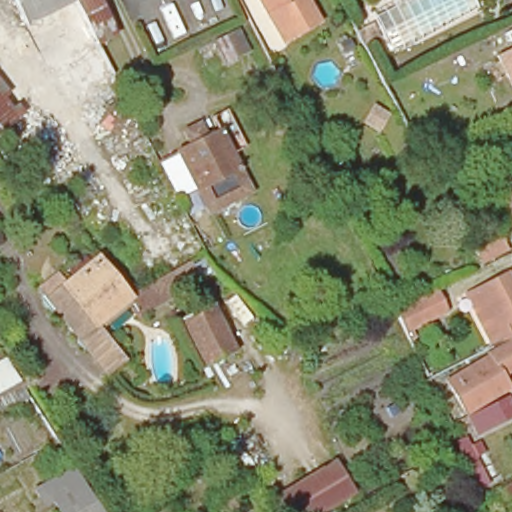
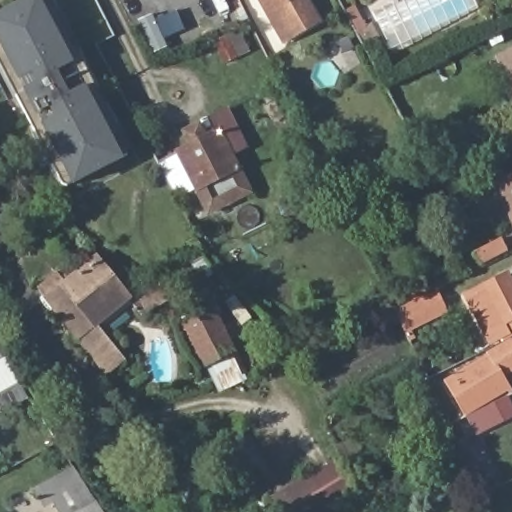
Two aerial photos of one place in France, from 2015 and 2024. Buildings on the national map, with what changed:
new [(122,157),(71,184),(67,186),(61,184),(0,63),(0,13),(25,0),(54,0),(129,154),(122,157)]
demolished [(17,0),(103,0),(118,30),(104,37),(118,71),(62,94),(17,0)]
unchanged [(273,42),(250,0),(297,0),(309,21),(273,42)]
unchanged [(495,57),(512,48),(512,92),(495,57)]
unchanged [(389,112),(378,132),(360,124),(371,102),(389,112)]
unchanged [(239,176),(230,180),(236,192),(212,204),(206,192),(196,197),(172,148),(185,142),(179,127),(195,120),(202,134),(215,127),(239,176)]
unchanged [(504,176),(512,172),(512,195),(504,176)]
unchanged [(468,200),(496,186),(504,200),(476,214),(468,200)]
unchanged [(475,268),(463,249),(498,230),(510,249),(475,268)]
unchanged [(96,257),(127,297),(112,309),(81,269),(96,257)]
unchanged [(86,348),(78,337),(46,297),(55,291),(48,282),(56,276),(62,284),(81,269),(112,309),(95,323),(103,335),(86,348)]
unchanged [(512,283),(512,332),(504,336),(501,331),(487,337),(463,290),(505,270),(512,283)]
unchanged [(400,311),(428,297),(436,313),(408,327),(400,311)]
unchanged [(171,325),(202,310),(222,356),(191,370),(171,325)]
unchanged [(490,351),(488,346),(512,334),(512,365),(503,369),(510,383),(465,405),(448,372),(490,351)]
unchanged [(19,382),(27,395),(0,410),(0,362),(5,360),(19,382)]
unchanged [(476,432),(469,437),(460,417),(512,392),(512,415),(476,432)]
unchanged [(478,442),(482,452),(475,456),(486,483),(475,488),(457,449),(478,442)]
unchanged [(325,465),(345,498),(324,512),(270,512),(265,502),(325,465)]
unchanged [(96,512),(60,512),(55,503),(41,512),(40,512),(25,490),(67,467),(96,512)]

